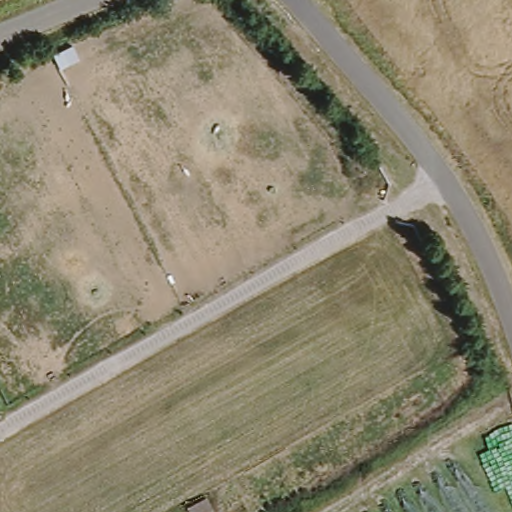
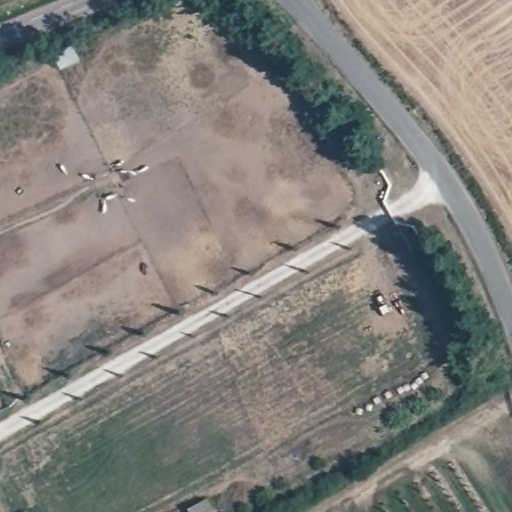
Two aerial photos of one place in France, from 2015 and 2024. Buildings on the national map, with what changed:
unchanged [(216,511),(215,512),(187,512),(183,505),(206,495),(216,511)]

